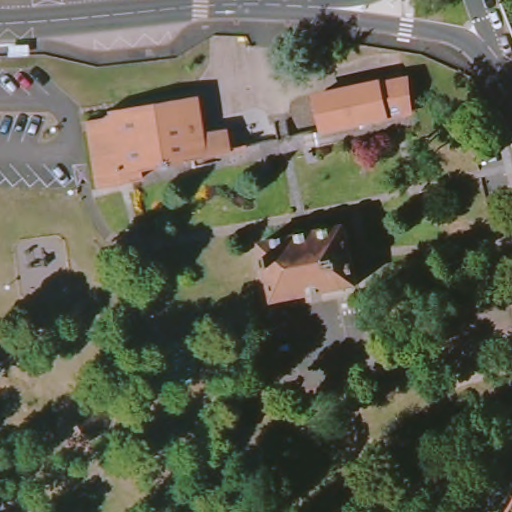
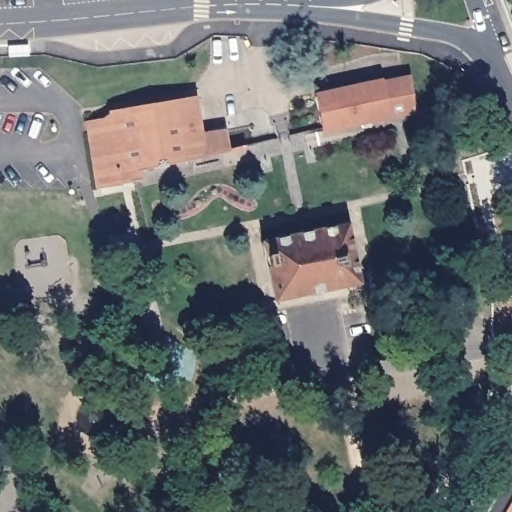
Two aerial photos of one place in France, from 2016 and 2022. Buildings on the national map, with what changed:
unchanged [(317,96),(383,81),(383,84),(408,79),(412,111),(324,130),(317,96)]
unchanged [(86,121),(94,120),(101,118),(110,112),(194,98),(201,136),(226,131),(230,151),(215,155),(216,162),(193,167),(192,160),(120,177),(122,186),(98,190),(86,121)]
unchanged [(262,242),(346,226),(359,285),(273,303),(262,242)]

